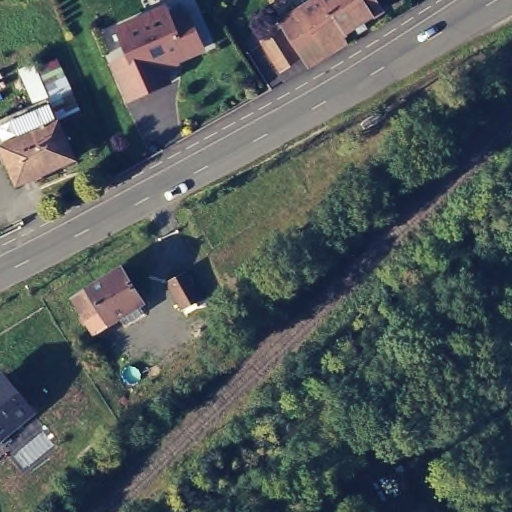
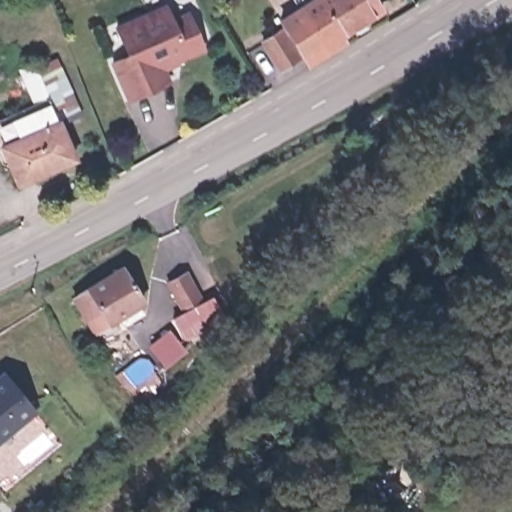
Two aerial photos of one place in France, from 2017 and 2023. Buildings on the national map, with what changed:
unchanged [(286,20),(316,0),(376,0),(381,5),(329,42),(329,47),(310,59),(286,20)]
unchanged [(126,54),(113,23),(164,2),(171,18),(187,11),(204,52),(165,68),(172,83),(126,102),(108,62),(126,54)]
unchanged [(281,26),(301,52),(285,63),(264,36),(281,26)]
unchanged [(52,99),(38,105),(22,69),(36,62),(38,67),(61,58),(83,114),(63,124),(52,99)]
unchanged [(52,99),(63,124),(78,158),(19,184),(0,138),(0,121),(52,99)]
unchanged [(120,267),(134,302),(88,326),(74,288),(120,267)]
unchanged [(168,281),(183,274),(193,269),(207,293),(197,300),(181,308),(168,281)]
unchanged [(1,372),(35,411),(0,441),(0,372),(1,372)]

